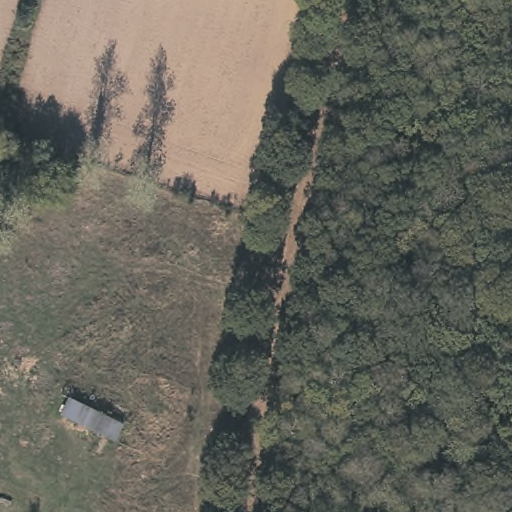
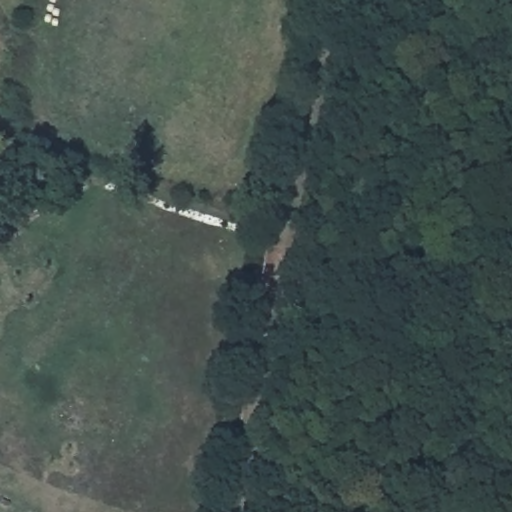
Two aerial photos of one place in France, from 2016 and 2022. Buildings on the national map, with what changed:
demolished [(131,421),(119,441),(57,413),(68,391),(131,421)]

